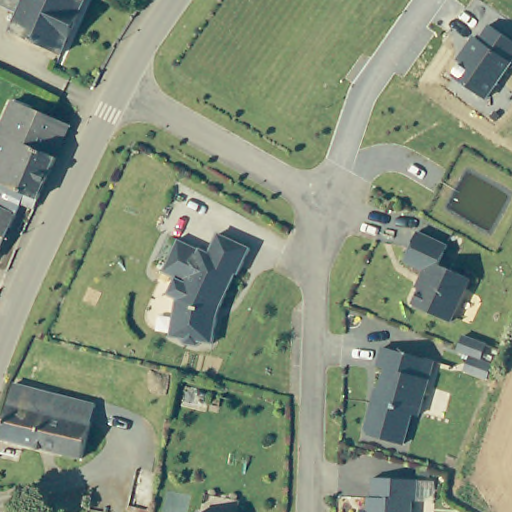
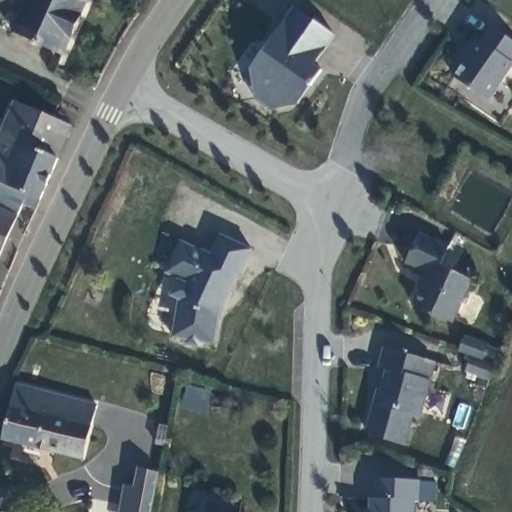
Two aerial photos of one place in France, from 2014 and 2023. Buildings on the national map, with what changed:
unchanged [(65,49),(12,25),(20,8),(2,0),(86,0),(65,49)]
new [(335,35),(315,65),(321,70),(297,105),(268,109),(255,100),(249,69),(292,7),(335,35)]
unchanged [(480,40),(490,26),(512,41),(512,65),(487,101),(453,77),(462,64),(457,60),(476,37),(480,40)]
unchanged [(15,95),(72,121),(41,192),(27,186),(0,175),(0,130),(15,95)]
unchanged [(27,186),(0,248),(0,175),(27,186)]
unchanged [(450,246),(441,264),(473,280),(452,322),(415,304),(426,282),(425,276),(427,271),(407,261),(421,231),(450,246)]
unchanged [(253,252),(240,278),(238,277),(222,309),(219,311),(217,316),(219,320),(215,344),(205,343),(200,347),(187,345),(183,340),(173,338),(179,301),(170,297),(177,281),(165,275),(181,241),(212,256),(221,237),(253,252)]
unchanged [(464,369),(470,355),(456,350),(462,336),(500,351),(493,364),(487,378),(464,369)]
unchanged [(367,429),(375,402),(379,404),(382,390),(380,390),(387,368),(378,365),(384,346),(425,357),(420,376),(428,378),(418,415),(411,413),(403,443),(368,433),(367,429)]
unchanged [(15,382),(97,402),(84,457),(2,437),(15,382)]
new [(150,512),(118,512),(123,485),(133,487),(136,468),(158,472),(150,512)]
unchanged [(418,499),(413,499),(413,512),(370,512),(370,497),(372,497),(373,477),(418,478),(418,499)]

